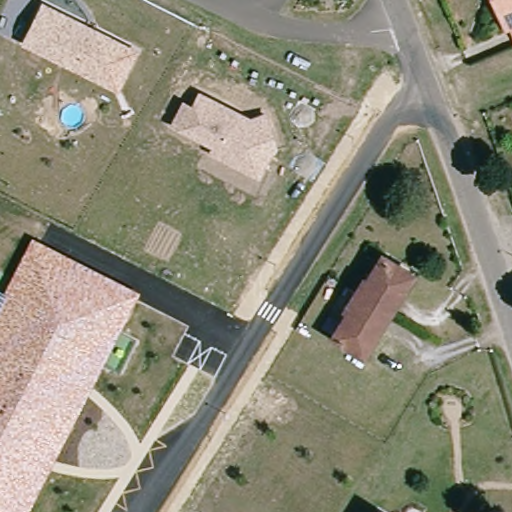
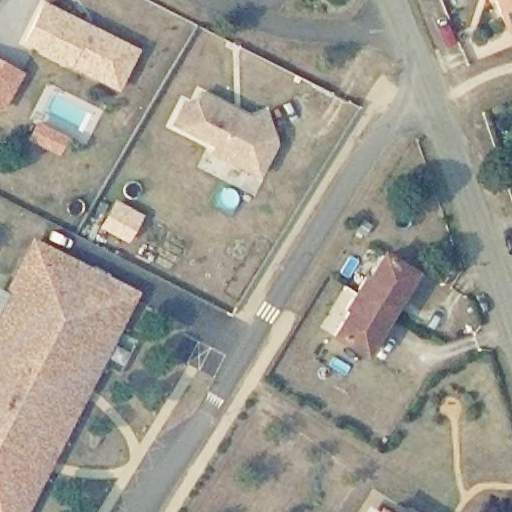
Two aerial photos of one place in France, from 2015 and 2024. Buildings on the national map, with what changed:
unchanged [(512,19),(505,21),(501,23),(492,0),(512,0),(512,19)]
unchanged [(119,92),(22,43),(43,1),(141,50),(119,92)]
unchanged [(512,19),(512,38),(505,21),(512,19)]
new [(23,73),(3,111),(0,110),(0,60),(23,73)]
unchanged [(210,151),(213,144),(212,143),(172,123),(182,102),(191,106),(198,93),(232,110),(248,118),(263,113),(272,143),(267,152),(256,174),(244,168),(210,151)]
unchanged [(28,512),(0,512),(0,288),(5,291),(33,238),(141,292),(28,512)]
unchanged [(397,300),(395,299),(387,312),(356,293),(366,276),(368,277),(383,255),(413,273),(397,300)]
unchanged [(379,325),(382,326),(365,354),(333,335),(349,311),(345,309),(356,293),(387,312),(379,325)]
unchanged [(380,512),(377,512),(378,510),(380,512)]

